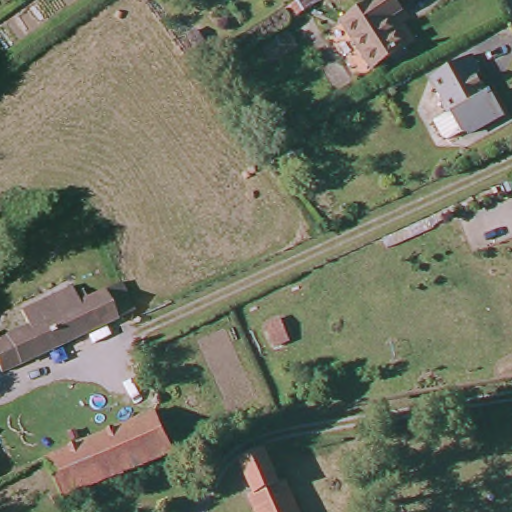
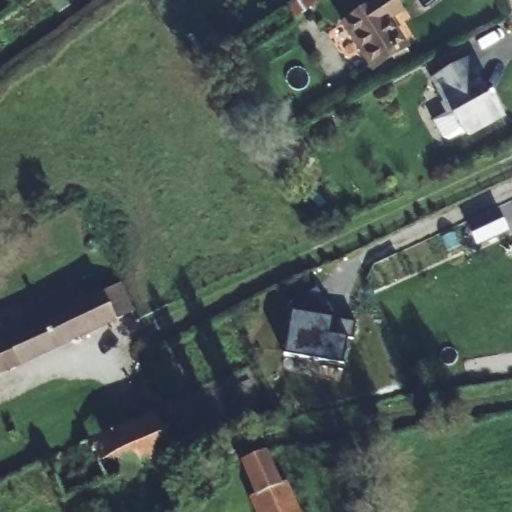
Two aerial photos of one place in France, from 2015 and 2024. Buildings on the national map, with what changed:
unchanged [(306,0),(299,5),(296,0),(306,0)]
unchanged [(374,0),(394,0),(402,12),(388,20),(407,51),(371,69),(338,19),(374,0)]
unchanged [(292,19),(321,2),(327,13),(298,30),(292,19)]
unchanged [(469,129),(454,136),(448,134),(438,115),(453,109),(448,98),(451,97),(442,75),(444,72),(478,55),(486,72),(483,73),(494,95),(497,94),(507,114),(474,130),(469,129)]
unchanged [(117,272),(136,307),(121,313),(110,288),(76,302),(71,291),(72,291),(86,285),(117,272)]
new [(344,365),(284,355),(293,303),(317,287),(336,316),(352,321),(347,347),(344,365)]
unchanged [(23,326),(18,314),(22,312),(71,291),(76,302),(110,288),(121,313),(0,364),(0,335),(23,326)]
unchanged [(133,462),(61,492),(45,457),(87,440),(80,423),(98,416),(105,433),(156,412),(170,447),(168,448),(133,462)]
unchanged [(278,475),(283,473),(301,512),(255,512),(245,492),(252,488),(240,462),(266,451),(278,475)]
unchanged [(41,483),(65,512),(8,512),(41,483)]

